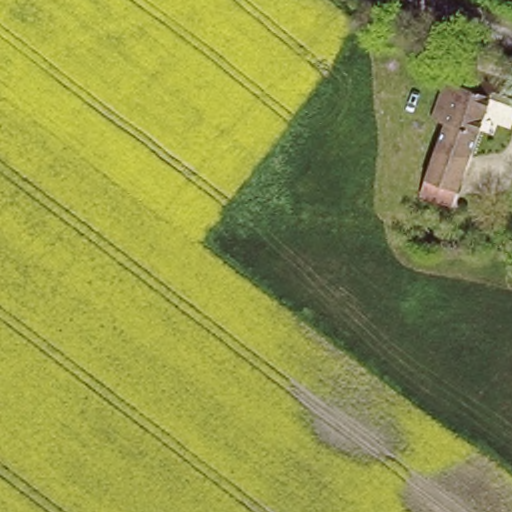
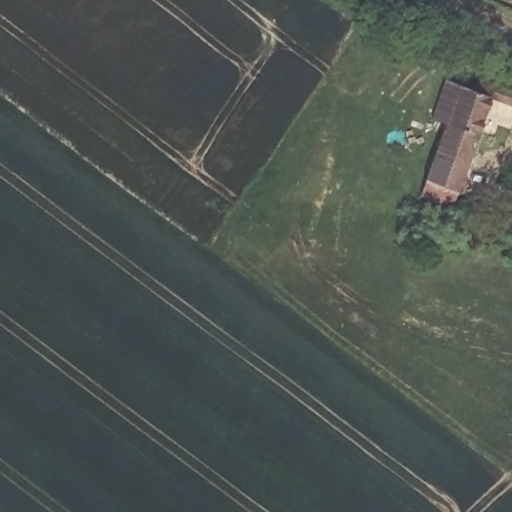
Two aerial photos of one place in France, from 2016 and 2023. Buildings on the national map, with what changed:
unchanged [(487,106),(449,214),(416,203),(442,130),(430,126),(443,90),(447,78),(474,87),(512,101),(512,115),(487,106)]

